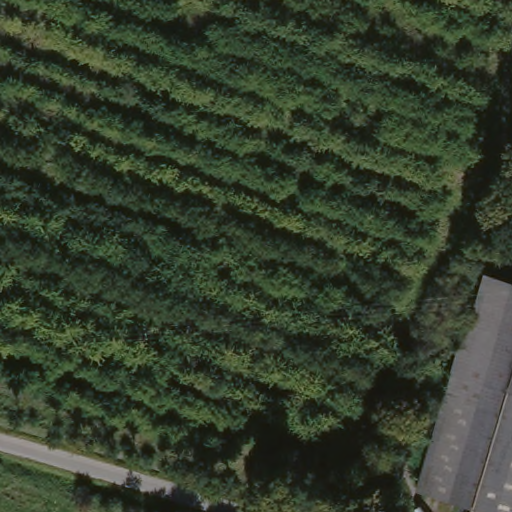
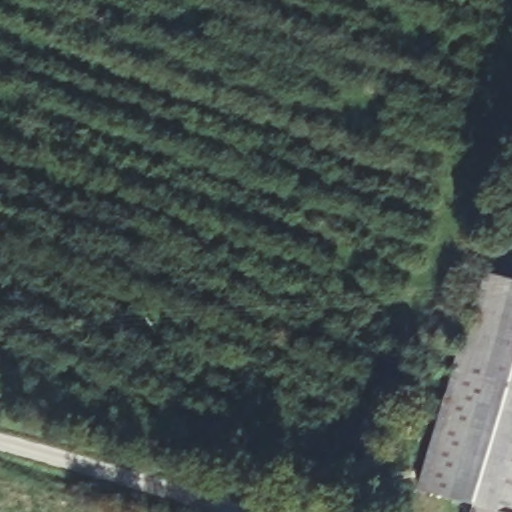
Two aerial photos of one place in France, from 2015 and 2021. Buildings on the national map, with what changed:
unchanged [(512,289),(498,331),(466,322),(480,274),(512,284),(512,289)]
unchanged [(512,289),(512,512),(472,512),(474,506),(419,490),(466,322),(498,331),(512,289)]

